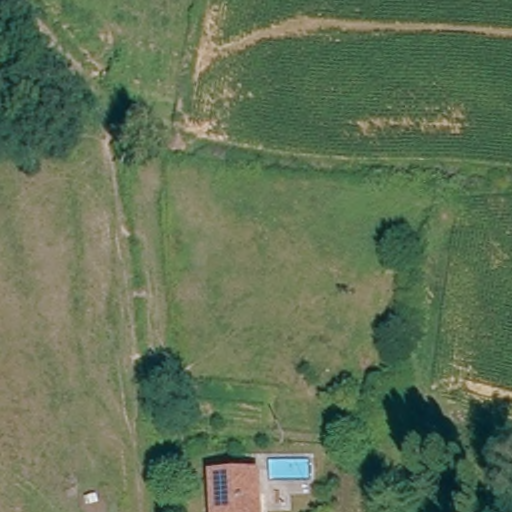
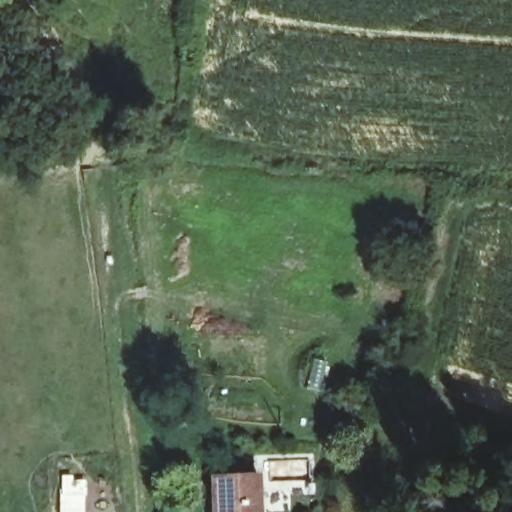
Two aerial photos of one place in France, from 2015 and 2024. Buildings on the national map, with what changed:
unchanged [(217,471),(262,470),(265,512),(219,512),(217,471)]

